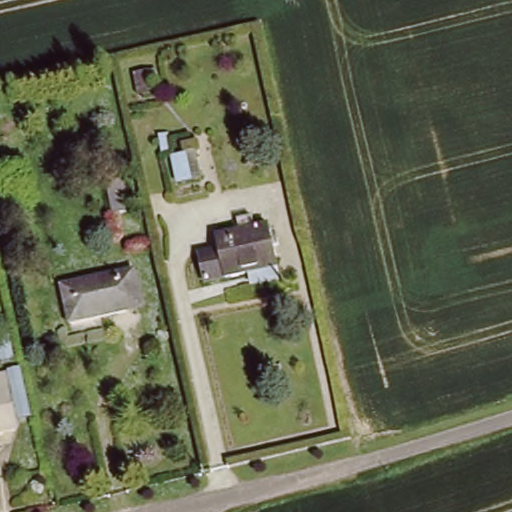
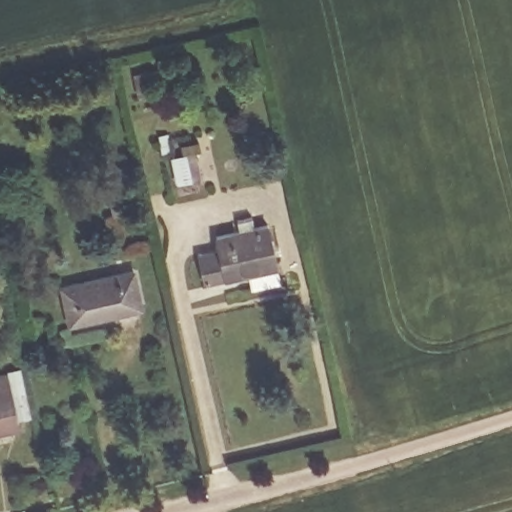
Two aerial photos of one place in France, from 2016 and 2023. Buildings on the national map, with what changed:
unchanged [(109,176),(122,174),(128,210),(115,214),(109,176)]
unchanged [(207,285),(202,258),(221,255),(218,240),(237,236),(235,226),(258,222),(260,230),(272,228),(278,271),(207,285)]
unchanged [(138,270),(145,304),(71,318),(64,285),(138,270)]
unchanged [(12,371),(21,420),(0,425),(0,374),(12,371)]

